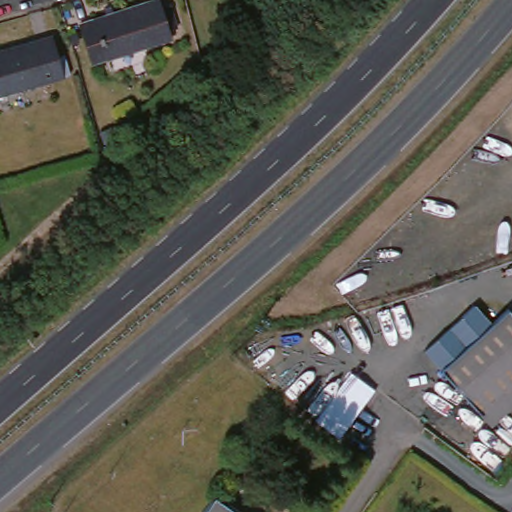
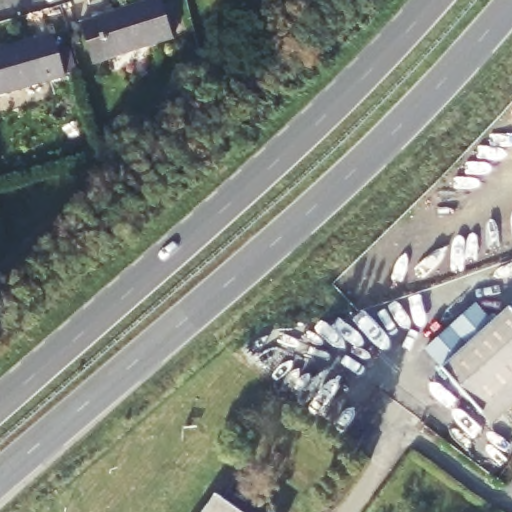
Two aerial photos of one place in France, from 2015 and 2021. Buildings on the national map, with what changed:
unchanged [(81,25),(159,0),(161,0),(174,40),(94,66),(81,25)]
unchanged [(0,96),(0,52),(54,38),(66,78),(0,96)]
unchanged [(475,310),(493,329),(509,315),(512,318),(512,412),(491,430),(425,356),(475,310)]
unchanged [(228,512),(209,512),(215,503),(228,512)]

